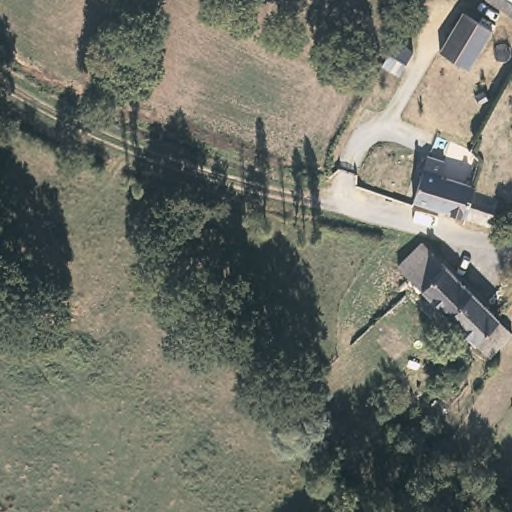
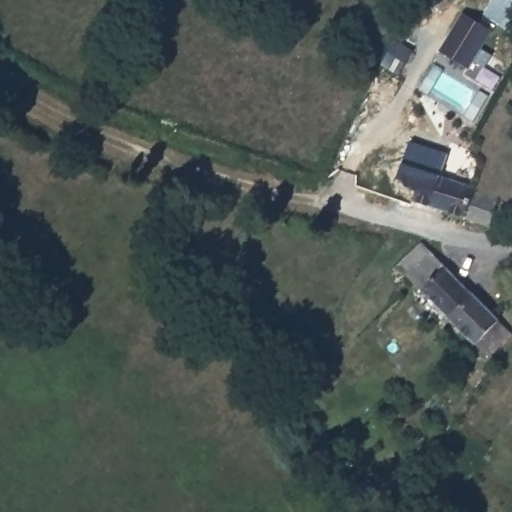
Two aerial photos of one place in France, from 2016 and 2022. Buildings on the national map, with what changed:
unchanged [(512,25),(476,4),(478,0),(488,0),(512,15),(512,25)]
unchanged [(493,31),(471,70),(441,54),(463,15),(493,31)]
unchanged [(395,41),(413,50),(400,76),(380,67),(395,41)]
unchanged [(491,219),(467,215),(413,207),(419,160),(437,162),(436,178),(451,180),(451,186),(468,189),(492,192),(491,219)]
unchanged [(512,338),(494,358),(427,298),(416,287),(399,266),(424,245),(512,332),(512,338)]

